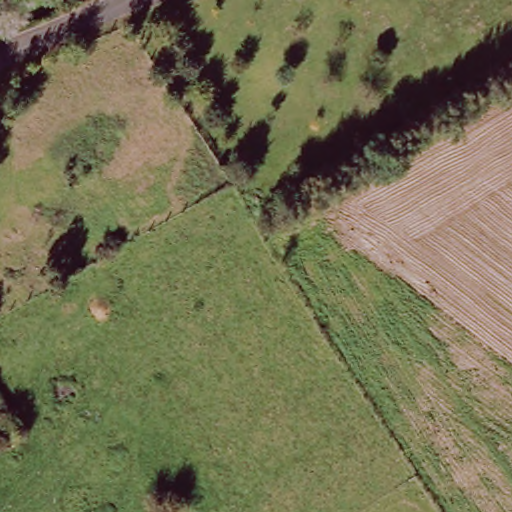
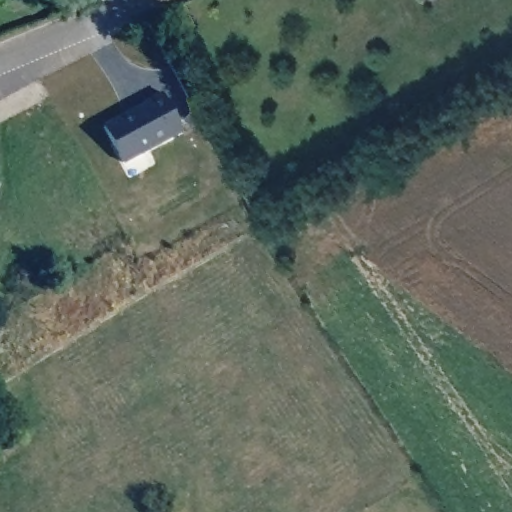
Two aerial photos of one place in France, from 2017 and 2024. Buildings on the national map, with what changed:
new [(123,165),(102,125),(162,94),(183,133),(123,165)]

